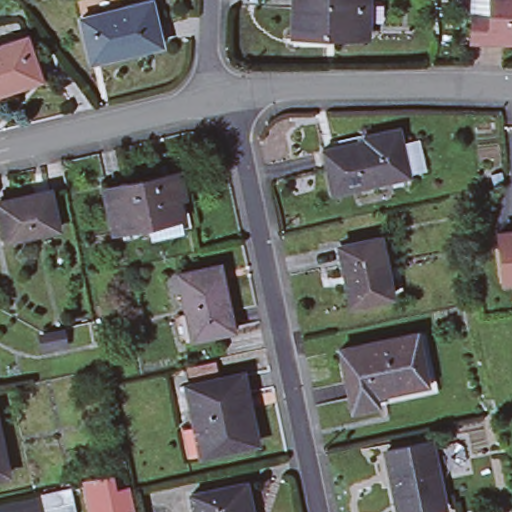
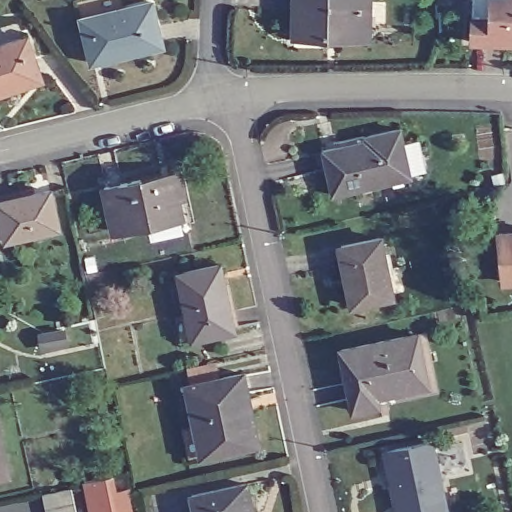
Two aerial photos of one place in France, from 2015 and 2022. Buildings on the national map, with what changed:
unchanged [(150,0),(162,46),(130,55),(128,48),(88,59),(78,20),(150,0)]
unchanged [(363,37),(292,35),(293,0),(365,0),(363,37)]
unchanged [(476,36),(477,11),(478,0),(512,0),(512,37),(476,36)]
unchanged [(374,139),(373,137),(405,128),(416,170),(385,179),(386,182),(342,193),(330,150),(374,139)]
unchanged [(143,178),(145,184),(182,175),(187,194),(179,196),(183,214),(117,229),(106,186),(143,178)]
unchanged [(56,228),(4,239),(0,221),(0,200),(48,189),(56,228)]
unchanged [(512,233),(512,280),(500,281),(495,234),(512,233)]
unchanged [(377,235),(388,295),(351,302),(340,243),(377,235)]
unchanged [(218,263),(232,329),(191,337),(176,271),(218,263)]
unchanged [(413,332),(426,382),(372,395),(375,402),(353,408),(338,348),(413,332)]
unchanged [(242,371),(257,441),(201,454),(185,383),(242,371)]
unchanged [(0,475),(0,433),(8,472),(0,475)]
unchanged [(443,506),(418,512),(399,512),(384,450),(427,439),(443,506)]
unchanged [(110,474),(114,490),(130,487),(135,511),(131,512),(91,512),(84,480),(110,474)]
unchanged [(251,505),(246,506),(247,512),(196,512),(192,494),(246,482),(251,505)]
unchanged [(71,487),(76,512),(46,512),(42,493),(71,487)]

